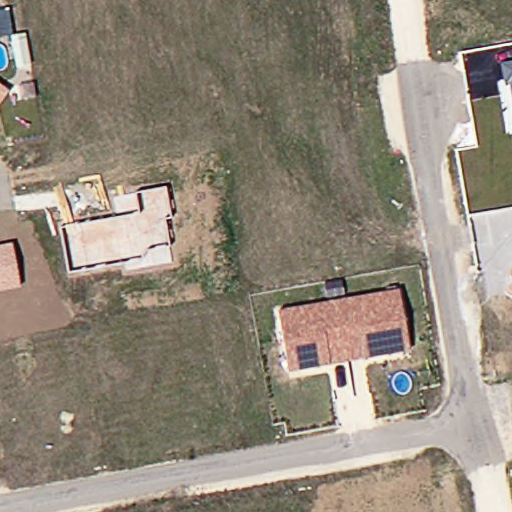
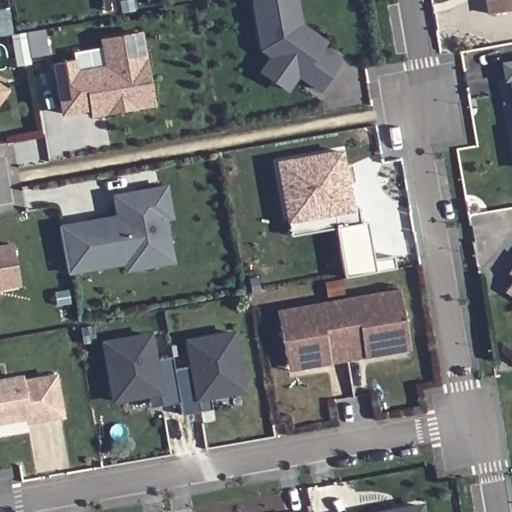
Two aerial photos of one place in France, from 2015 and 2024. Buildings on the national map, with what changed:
new [(265,52),(256,0),(298,0),(303,27),(325,43),(319,51),(342,67),(323,92),(301,77),(290,92),(264,73),(274,59),(265,52)]
new [(492,14),(490,0),(512,0),(512,10),(492,14)]
new [(17,67),(12,35),(1,37),(0,31),(0,12),(10,10),(14,35),(26,32),(32,64),(17,67)]
new [(75,62),(77,72),(107,67),(102,41),(140,33),(153,104),(92,115),(91,109),(63,114),(55,65),(75,62)]
unchanged [(508,82),(502,84),(500,64),(512,62),(512,102),(508,82)]
unchanged [(0,104),(0,85),(9,91),(0,104)]
new [(337,229),(291,237),(277,162),(342,152),(352,209),(359,207),(362,225),(367,223),(374,262),(393,258),(395,270),(347,278),(337,229)]
unchanged [(125,266),(69,275),(60,225),(114,216),(112,195),(167,186),(172,218),(166,219),(174,264),(125,273),(125,266)]
unchanged [(20,287),(0,291),(0,245),(12,242),(20,287)]
unchanged [(507,273),(512,266),(512,277),(507,273)]
unchanged [(505,292),(512,281),(512,297),(505,292)]
unchanged [(278,311),(398,289),(409,351),(289,372),(278,311)]
new [(246,393),(210,399),(211,409),(181,414),(179,403),(152,407),(150,397),(111,403),(100,342),(151,333),(156,358),(172,356),(174,369),(188,367),(184,339),(236,330),(246,393)]
unchanged [(23,380),(57,375),(64,418),(25,425),(24,420),(0,424),(0,379),(22,376),(23,380)]
new [(424,512),(395,512),(424,507),(424,512)]

